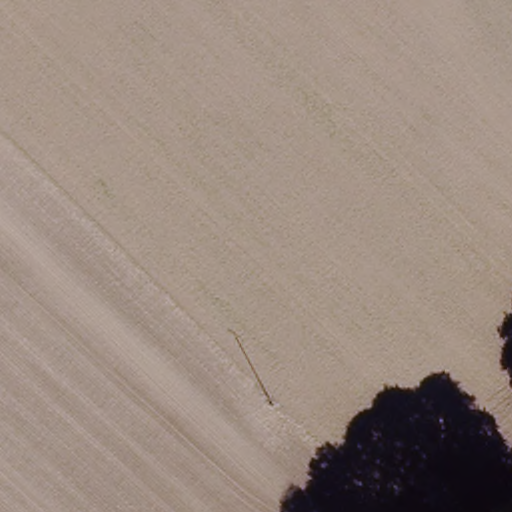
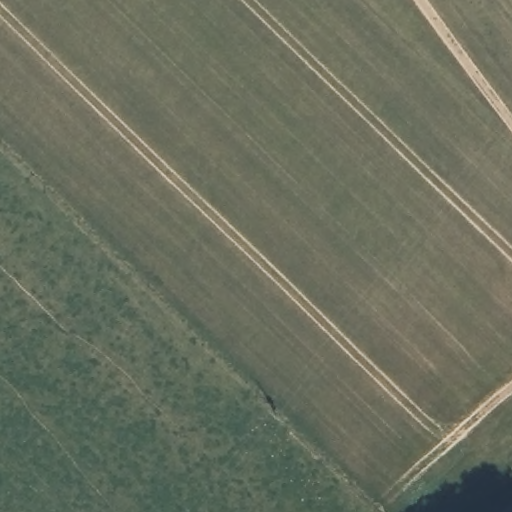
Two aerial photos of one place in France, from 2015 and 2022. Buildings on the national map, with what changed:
[]

